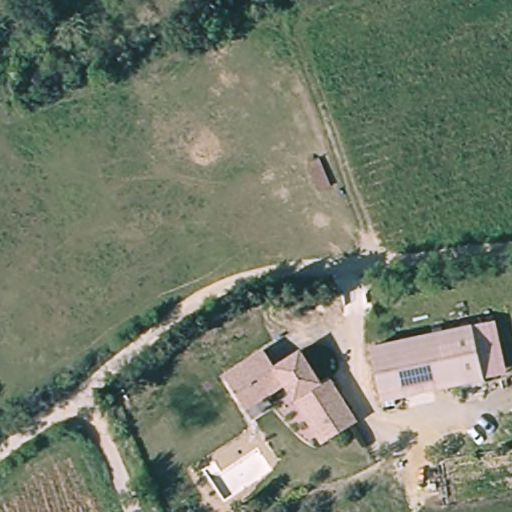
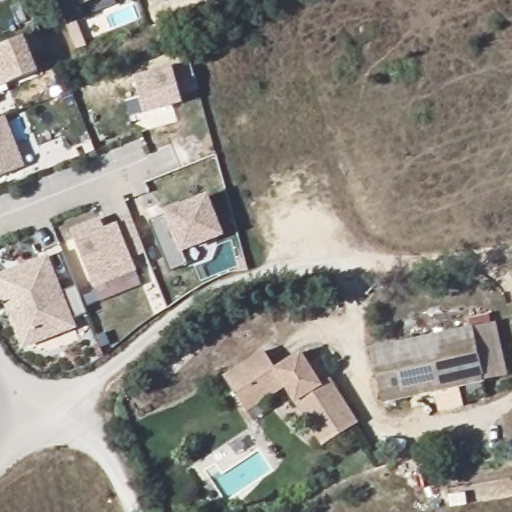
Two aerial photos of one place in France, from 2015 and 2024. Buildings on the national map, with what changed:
new [(79,0),(90,0),(80,4),(79,0)]
new [(76,21),(86,46),(76,49),(66,25),(76,21)]
new [(37,67),(0,81),(0,40),(23,31),(37,67)]
new [(133,76),(173,65),(191,60),(198,90),(181,95),(182,102),(143,113),(133,76)]
new [(24,167),(0,177),(0,117),(5,115),(24,167)]
new [(149,221),(165,216),(163,211),(208,194),(224,236),(183,253),(188,264),(168,271),(149,221)]
new [(100,217),(104,227),(118,222),(131,217),(143,253),(131,258),(136,271),(91,288),(70,229),(100,217)]
new [(62,291),(76,286),(86,313),(73,319),(76,328),(23,350),(0,294),(0,273),(48,255),(62,291)]
unchanged [(379,348),(474,330),(486,384),(395,402),(388,404),(376,349),(379,348)]
unchanged [(269,348),(278,367),(305,355),(321,389),(331,385),(348,421),(353,432),(316,450),(308,434),(286,386),(266,395),(243,406),(236,388),(226,369),(269,348)]

